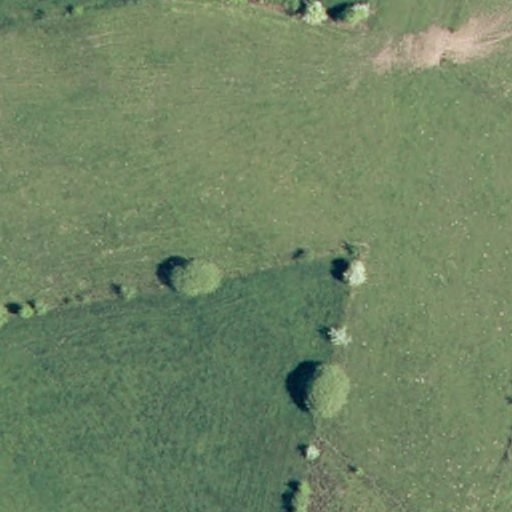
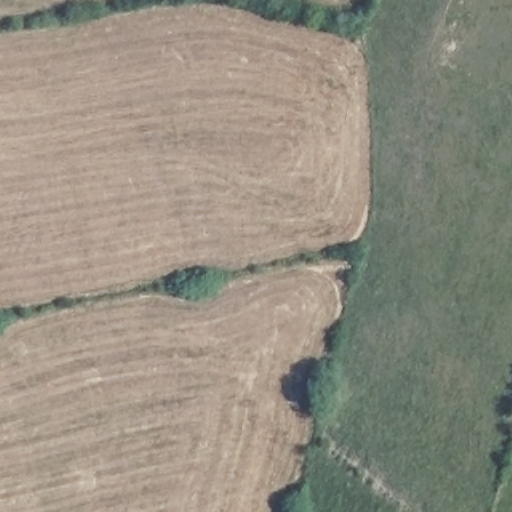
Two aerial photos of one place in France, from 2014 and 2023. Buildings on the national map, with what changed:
[]

